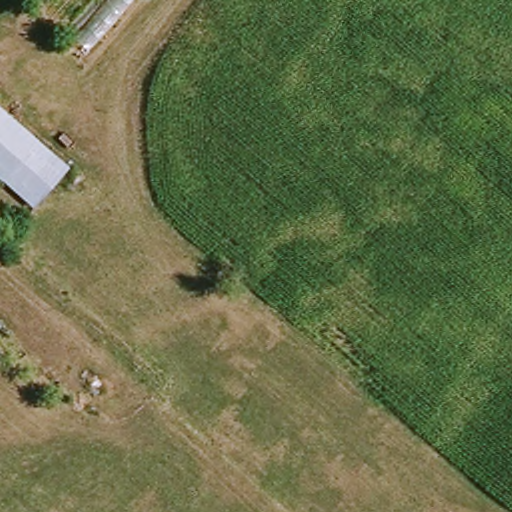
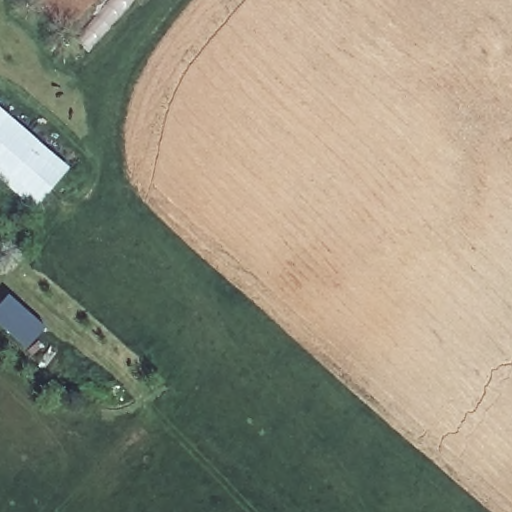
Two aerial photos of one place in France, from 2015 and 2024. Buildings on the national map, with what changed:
unchanged [(33,210),(0,175),(0,111),(64,180),(33,210)]
new [(48,326),(28,348),(0,324),(0,305),(11,293),(48,326)]

